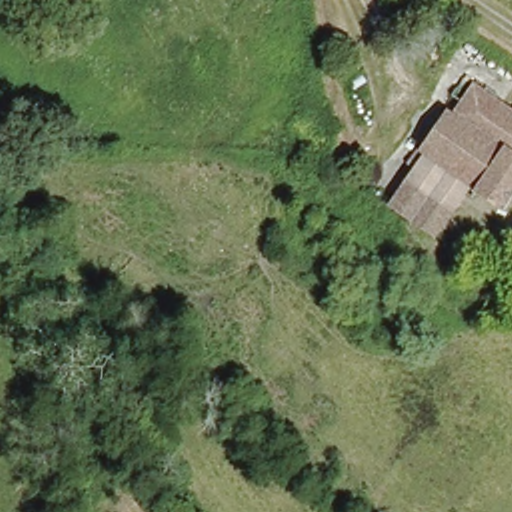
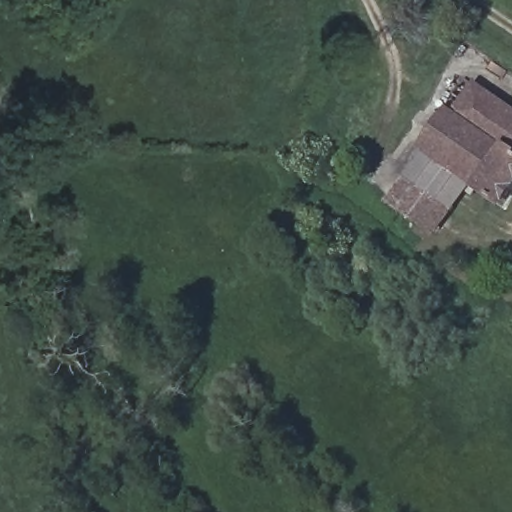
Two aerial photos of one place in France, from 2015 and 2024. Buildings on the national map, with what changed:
unchanged [(418,145),(448,105),(455,111),(479,79),(512,102),(512,193),(503,205),(468,181),(425,150),(418,145)]
unchanged [(425,150),(468,181),(447,210),(405,177),(425,150)]
unchanged [(427,234),(386,202),(405,177),(447,210),(427,234)]

